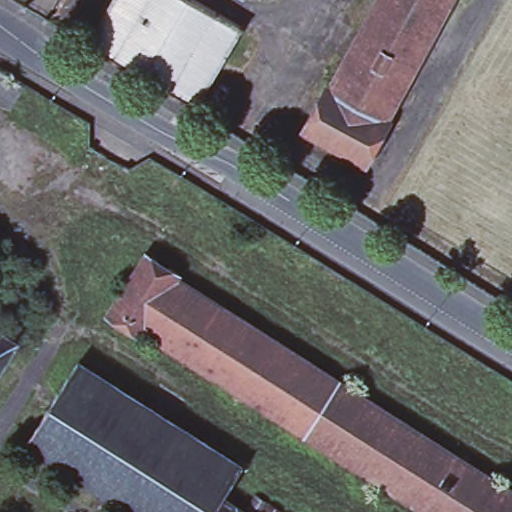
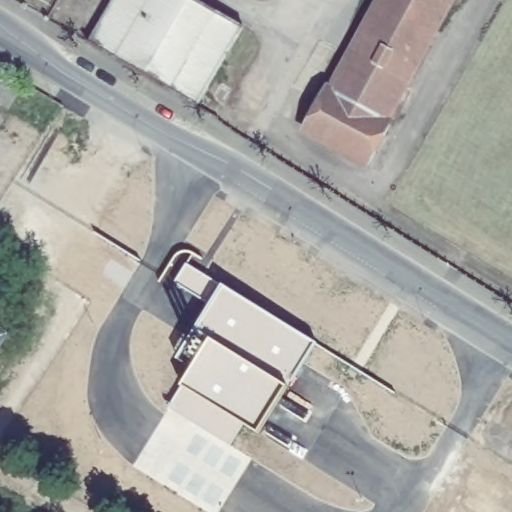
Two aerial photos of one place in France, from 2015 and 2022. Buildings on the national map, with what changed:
unchanged [(113,0),(201,0),(244,25),(197,105),(162,85),(89,42),(113,0)]
unchanged [(390,120),(394,122),(370,165),(306,130),(329,87),(333,90),(382,0),(455,0),(390,120)]
unchanged [(0,75),(22,87),(10,110),(0,105),(0,75)]
demolished [(180,275),(178,278),(512,486),(512,512),(430,512),(144,334),(142,337),(109,317),(147,255),(180,275)]
new [(193,333),(218,285),(317,348),(259,437),(242,430),(230,450),(250,462),(220,512),(198,512),(129,470),(205,341),(193,333)]
unchanged [(0,353),(0,334),(9,340),(0,353)]
demolished [(245,469),(225,500),(244,512),(135,512),(29,445),(79,365),(245,469)]

